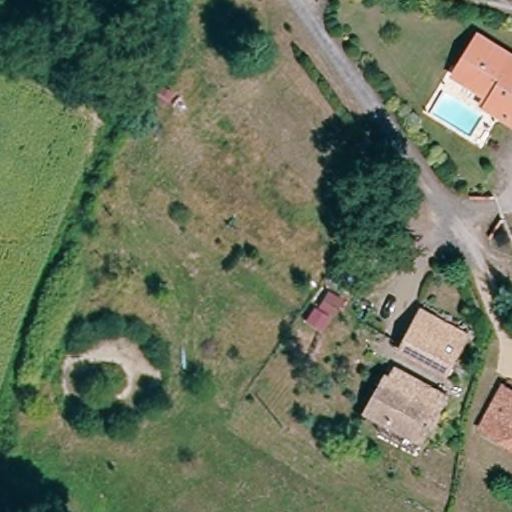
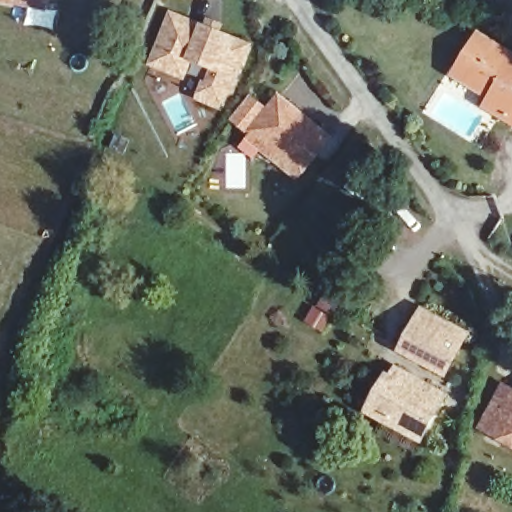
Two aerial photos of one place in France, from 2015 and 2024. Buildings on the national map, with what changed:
new [(0,1),(0,0),(50,0),(48,10),(0,1)]
new [(201,21),(204,23),(207,16),(224,23),(220,31),(232,35),(251,41),(235,83),(236,90),(227,96),(222,109),(194,99),(203,78),(206,80),(211,68),(193,61),(186,79),(148,65),(170,10),(201,21)]
unchanged [(487,104),(492,96),(456,74),(479,36),(512,57),(512,119),(510,119),(487,104)]
new [(333,137),(296,181),(276,164),(282,158),(246,131),(279,91),(333,137)]
unchanged [(319,276),(324,280),(313,297),(301,288),(312,272),(319,276)]
unchanged [(463,339),(440,382),(394,357),(382,350),(399,320),(410,326),(417,314),(463,339)]
unchanged [(392,375),(440,400),(435,410),(435,411),(417,446),(364,418),(382,383),(387,385),(392,375)]
unchanged [(504,391),(512,395),(512,449),(482,433),(504,391)]

